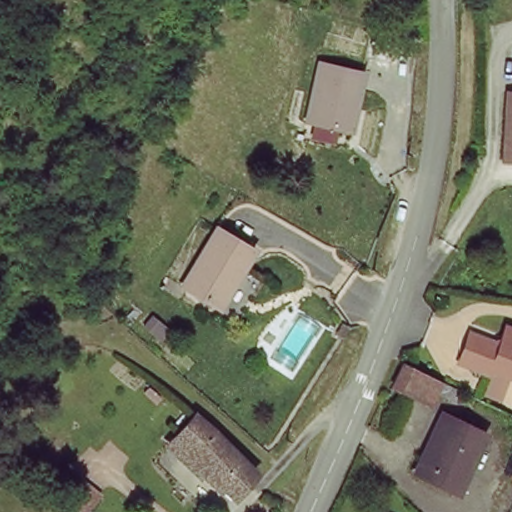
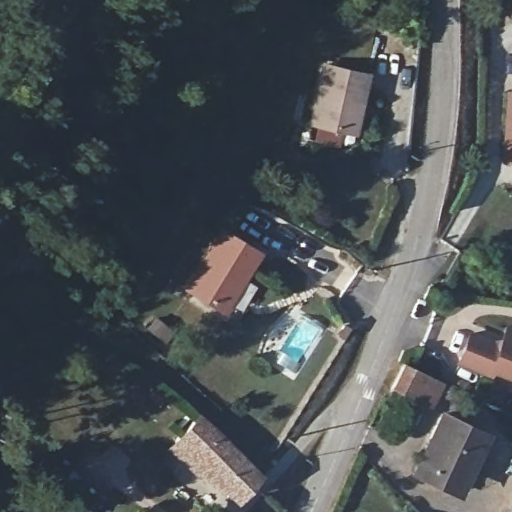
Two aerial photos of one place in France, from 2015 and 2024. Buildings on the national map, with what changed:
unchanged [(365,77),(355,135),(315,129),(326,70),(365,77)]
unchanged [(507,97),(512,97),(512,164),(504,163),(507,97)]
unchanged [(222,314),(187,289),(228,232),(264,255),(222,314)]
unchanged [(471,336),(488,342),(501,338),(508,322),(512,323),(512,376),(490,368),(488,375),(460,365),(471,336)]
unchanged [(439,383),(427,408),(391,390),(403,366),(439,383)]
unchanged [(485,439),(465,476),(424,455),(442,418),(485,439)]
unchanged [(261,475),(240,497),(179,445),(198,421),(261,475)]
unchanged [(455,496),(414,475),(424,455),(465,476),(455,496)]

